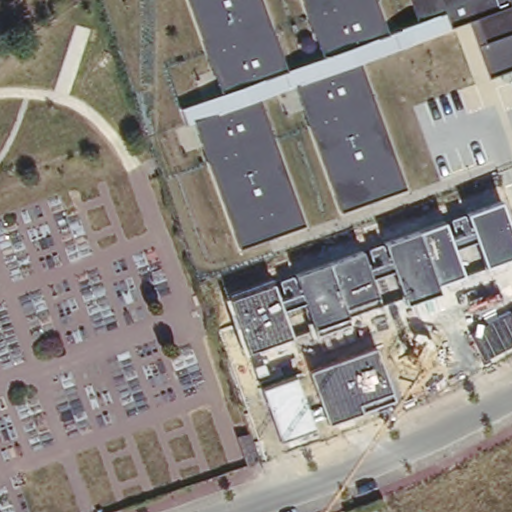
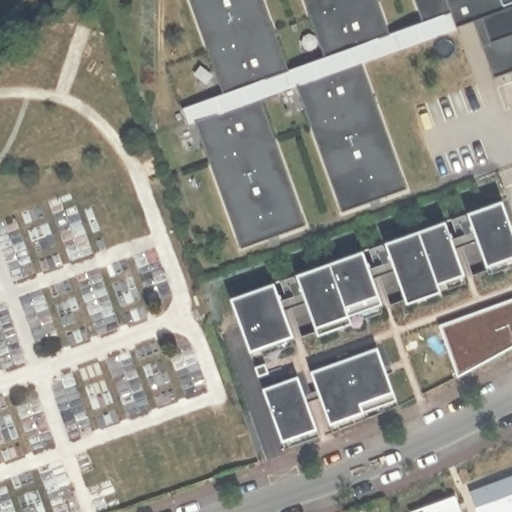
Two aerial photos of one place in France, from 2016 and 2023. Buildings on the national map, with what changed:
unchanged [(296,87),(261,100),(304,225),(240,247),(189,104),(223,92),(188,0),(263,0),(289,69),(324,56),(303,0),(377,0),(389,32),(422,21),(415,0),(512,0),(512,68),(495,74),(476,22),(363,63),(407,187),(341,210),(296,87)]
unchanged [(474,237),(453,245),(463,274),(436,283),(439,292),(405,302),(393,270),(372,277),(382,303),(313,328),(303,301),(283,307),(294,336),(247,352),(227,298),(500,200),(512,232),(512,255),(486,265),(474,237)]
new [(512,350),(457,380),(441,328),(512,302),(512,350)]
unchanged [(394,398),(329,422),(311,371),(377,348),(394,398)]
unchanged [(283,439),(264,388),(298,376),(316,426),(283,439)]
unchanged [(244,435),(256,429),(267,461),(254,466),(244,435)]
new [(512,475),(512,512),(477,512),(470,491),(512,475)]
new [(410,512),(456,496),(462,512),(410,512)]

